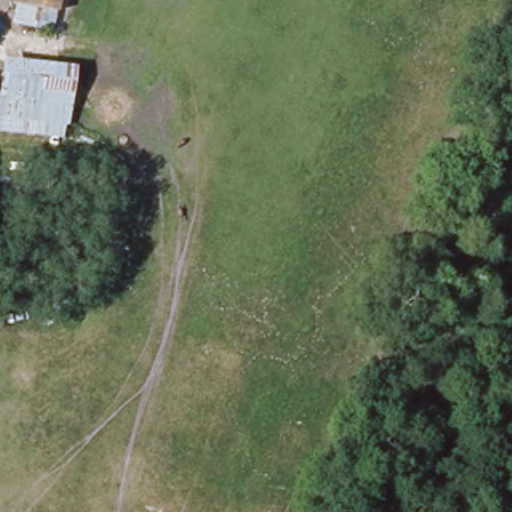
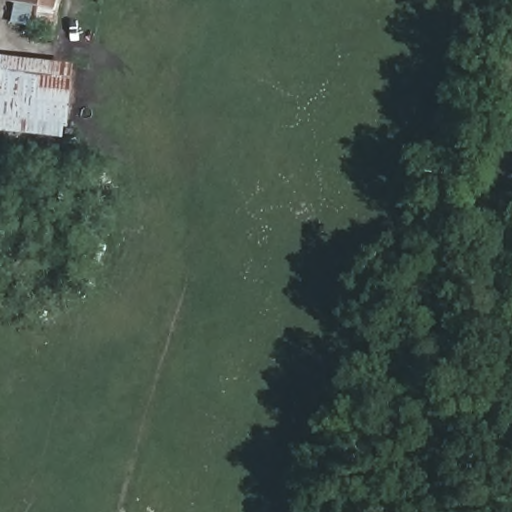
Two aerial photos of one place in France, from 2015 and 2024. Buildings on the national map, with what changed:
unchanged [(12,25),(17,4),(0,2),(0,0),(56,0),(49,30),(12,25)]
unchanged [(5,124),(0,123),(0,71),(0,66),(23,70),(47,74),(75,79),(65,135),(28,128),(5,124)]

